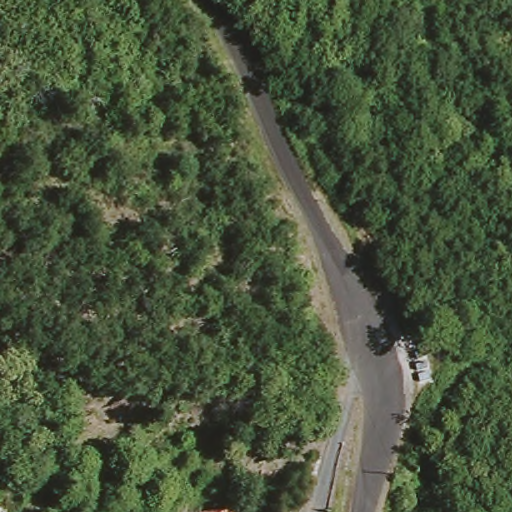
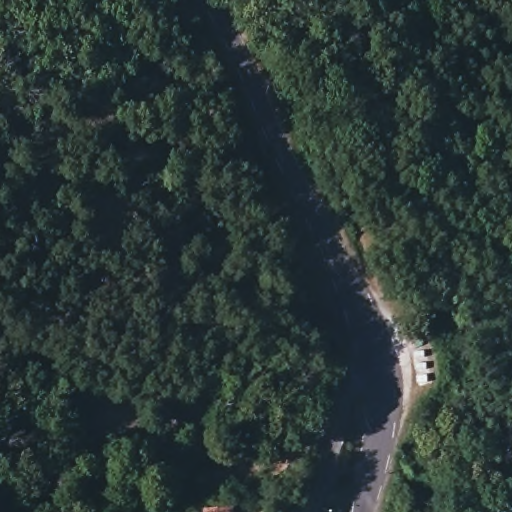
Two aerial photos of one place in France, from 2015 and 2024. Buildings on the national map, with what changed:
unchanged [(237,507),(237,512),(207,512),(207,508),(237,507)]

